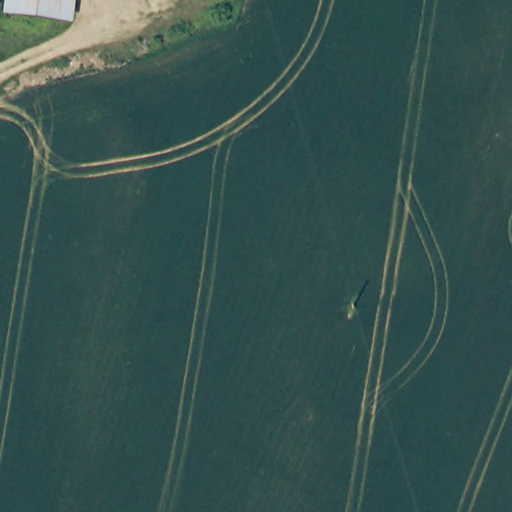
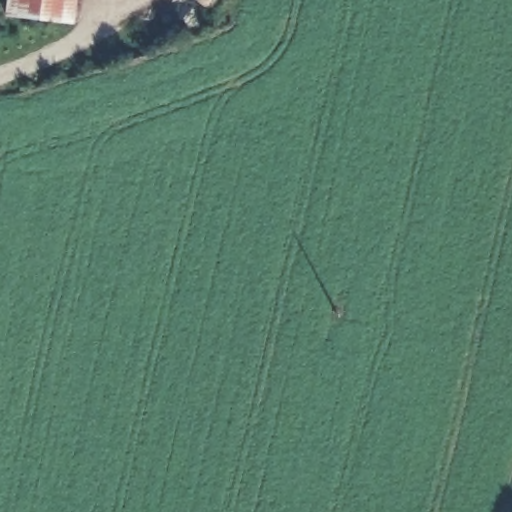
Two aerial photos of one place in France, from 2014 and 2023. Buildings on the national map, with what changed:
unchanged [(20,10),(21,0),(79,0),(78,14),(20,10)]

